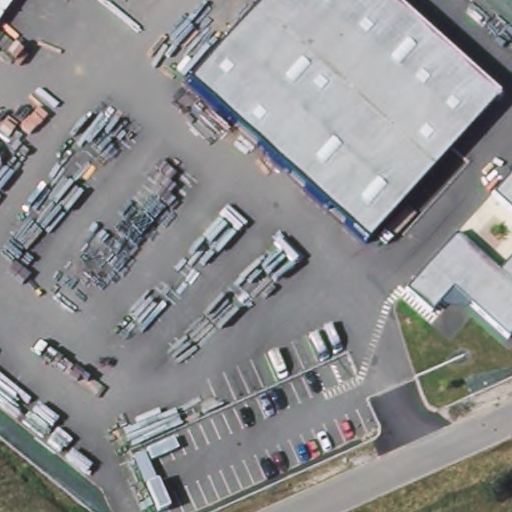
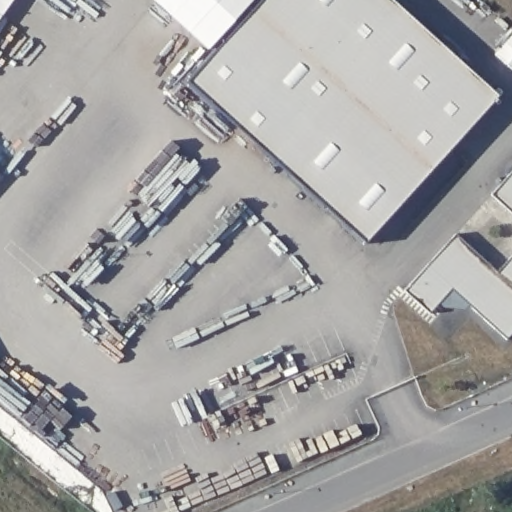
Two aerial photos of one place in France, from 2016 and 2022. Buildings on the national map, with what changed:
unchanged [(0,19),(0,0),(14,0),(0,19)]
new [(209,50),(153,0),(252,0),(209,50)]
unchanged [(187,82),(261,0),(388,0),(495,97),(361,241),(187,82)]
unchanged [(512,173),(512,213),(491,195),(512,173)]
unchanged [(430,313),(405,291),(455,235),(498,272),(512,257),(512,332),(507,338),(450,290),(430,313)]

